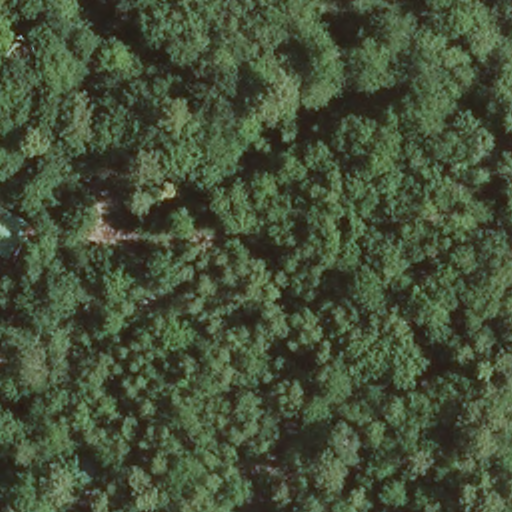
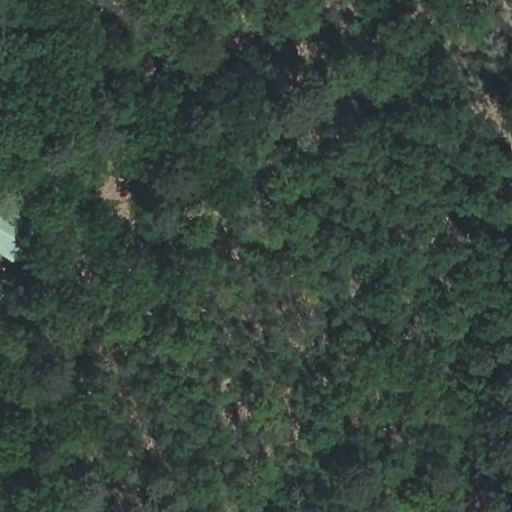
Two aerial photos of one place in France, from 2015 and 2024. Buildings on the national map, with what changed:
unchanged [(0,256),(0,199),(37,226),(12,265),(0,256)]

